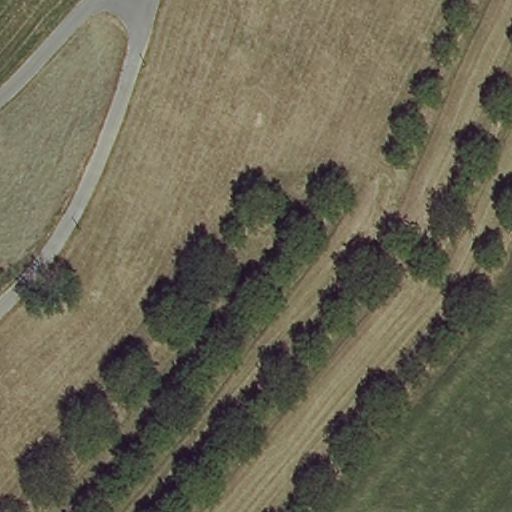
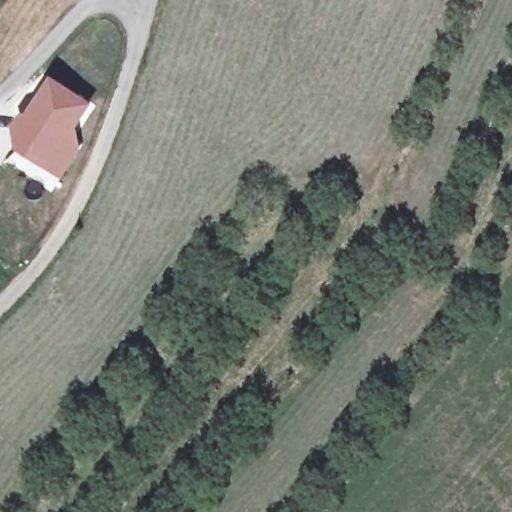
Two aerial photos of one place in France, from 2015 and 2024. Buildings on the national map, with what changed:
new [(26,114),(52,75),(93,102),(79,125),(82,146),(81,150),(61,180),(58,179),(17,150),(15,130),(26,114)]

